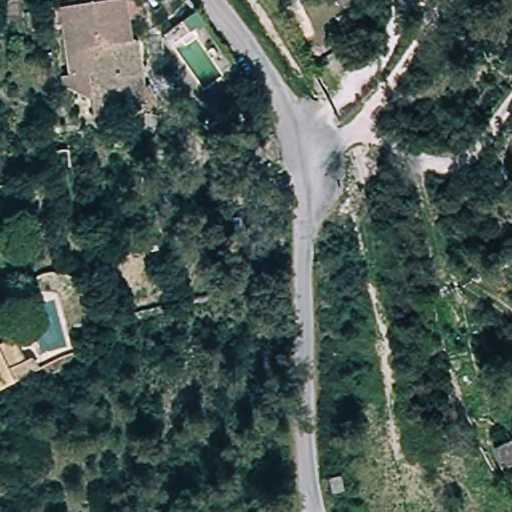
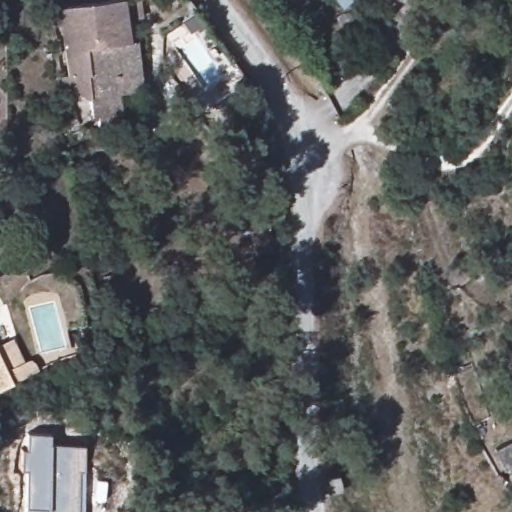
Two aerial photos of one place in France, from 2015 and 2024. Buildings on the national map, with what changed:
unchanged [(124,0),(136,41),(130,42),(143,91),(118,95),(121,125),(97,128),(96,117),(90,117),(88,100),(64,89),(61,87),(60,77),(57,15),(56,8),(60,7),(113,0),(124,0)]
new [(335,0),(352,0),(343,9),(335,0)]
demolished [(53,288),(75,282),(87,327),(64,332),(53,288)]
unchanged [(16,337),(27,361),(33,358),(38,363),(41,370),(0,392),(0,346),(16,337)]
new [(49,433),(49,446),(83,445),(84,471),(78,471),(78,512),(26,512),(26,472),(22,472),(22,451),(28,452),(27,435),(49,433)]
unchanged [(503,466),(494,443),(512,437),(512,463),(503,466)]
unchanged [(331,496),(328,480),(329,480),(339,477),(343,493),(335,495),(331,496)]

